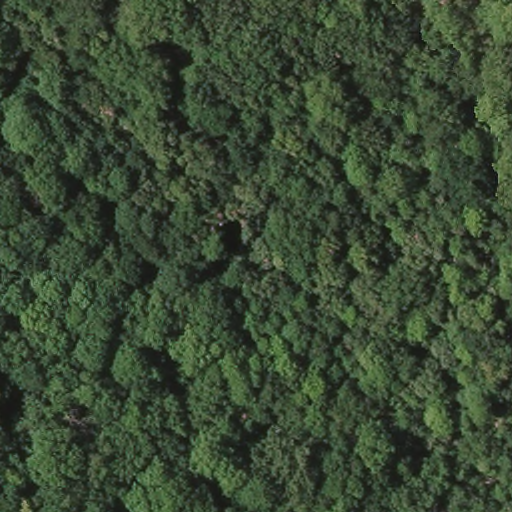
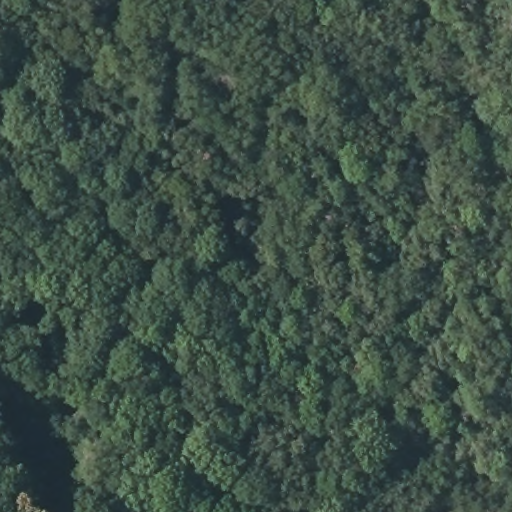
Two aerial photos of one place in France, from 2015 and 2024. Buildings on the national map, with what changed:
unchanged [(259,157),(295,178),(283,199),(247,177),(259,157)]

